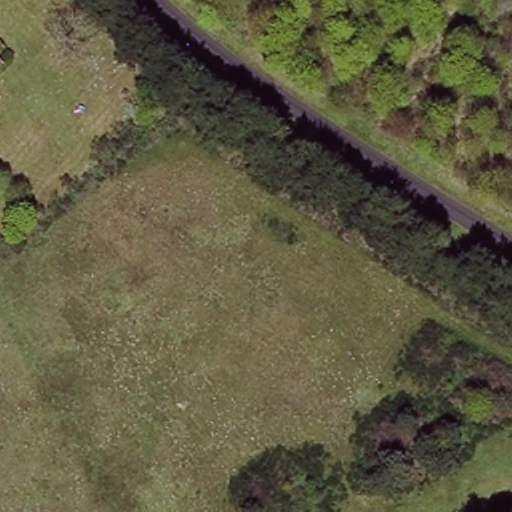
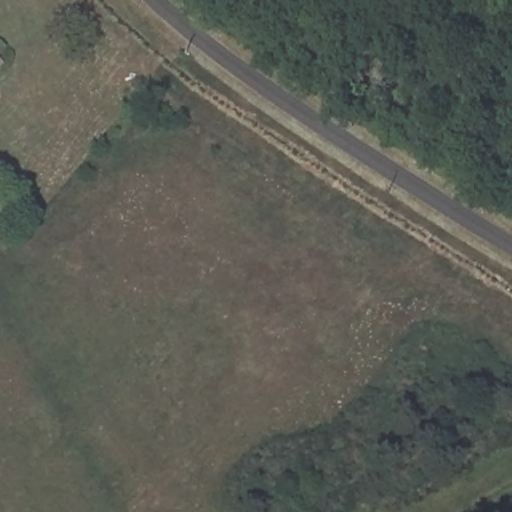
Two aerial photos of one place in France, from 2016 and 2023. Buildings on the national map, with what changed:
unchanged [(0,60),(3,62),(0,65),(0,60)]

